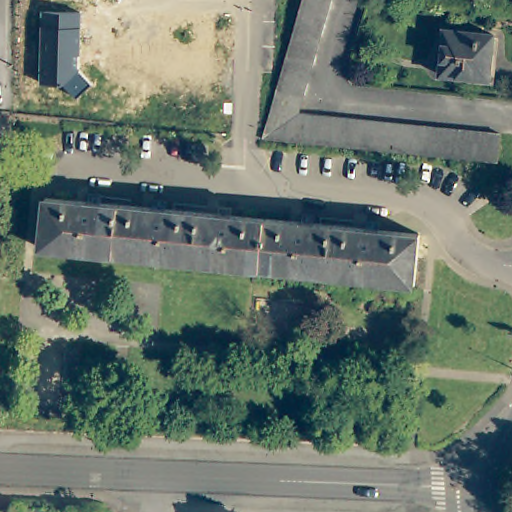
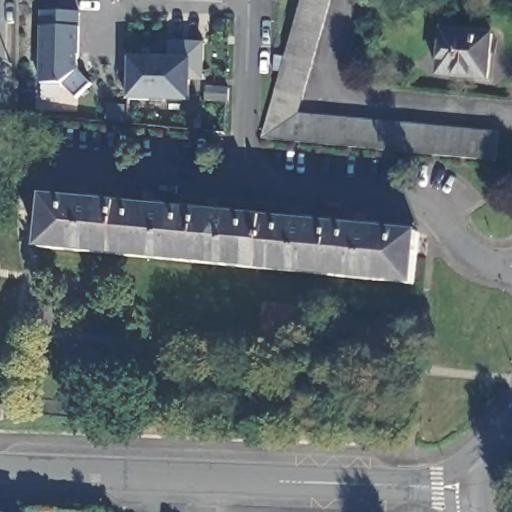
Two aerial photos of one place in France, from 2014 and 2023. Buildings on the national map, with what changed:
unchanged [(297,113),(496,132),(493,159),(488,159),(313,141),(308,141),(262,136),(260,135),(272,94),(290,35),(295,19),(301,0),(330,0),(311,63),(297,113)]
unchanged [(79,69),(91,84),(76,99),(60,83),(40,83),(42,11),(82,12),(79,69)]
unchanged [(491,34),(486,78),(437,73),(441,29),(491,34)]
new [(204,80),(190,79),(190,100),(129,99),(130,55),(170,56),(170,40),(204,40),(204,80)]
unchanged [(152,199),(166,200),(165,209),(217,214),(219,205),(231,207),(230,215),(299,222),(299,214),(311,214),(311,223),(363,228),(364,219),(375,220),(375,229),(416,232),(417,233),(417,234),(412,283),(305,272),(40,247),(44,198),(87,202),(87,194),(100,194),(100,203),(151,208),(152,199)]

